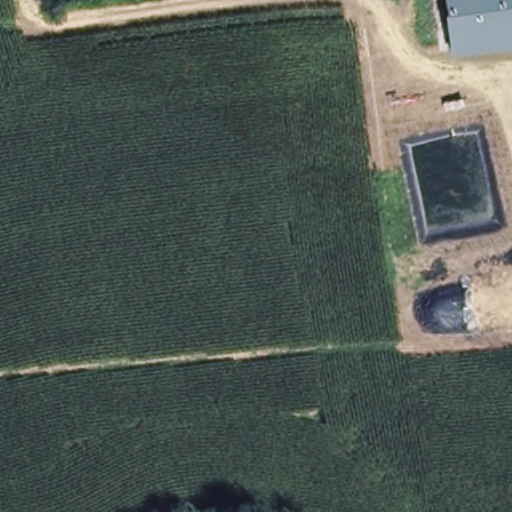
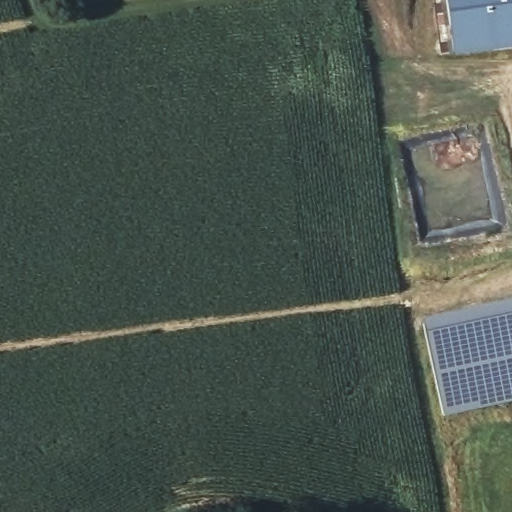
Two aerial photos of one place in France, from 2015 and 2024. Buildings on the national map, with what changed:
unchanged [(444,0),(512,0),(512,45),(473,51),(451,55),(444,0)]
new [(512,306),(512,406),(442,422),(421,327),(512,306)]

